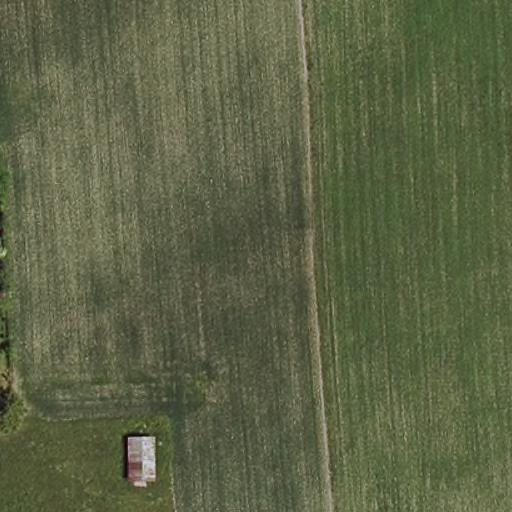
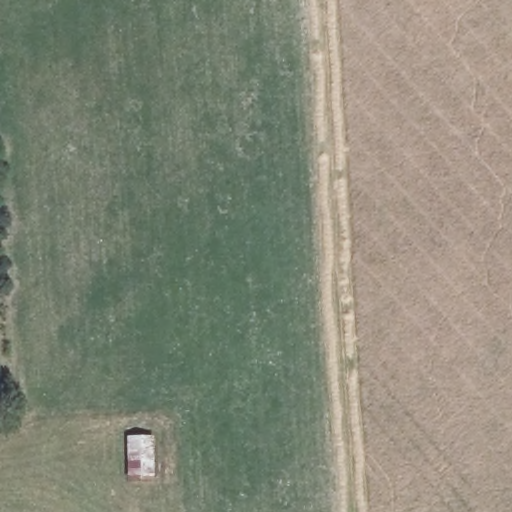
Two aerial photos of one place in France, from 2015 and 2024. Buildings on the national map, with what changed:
unchanged [(159,438),(159,484),(129,484),(128,437),(159,438)]

